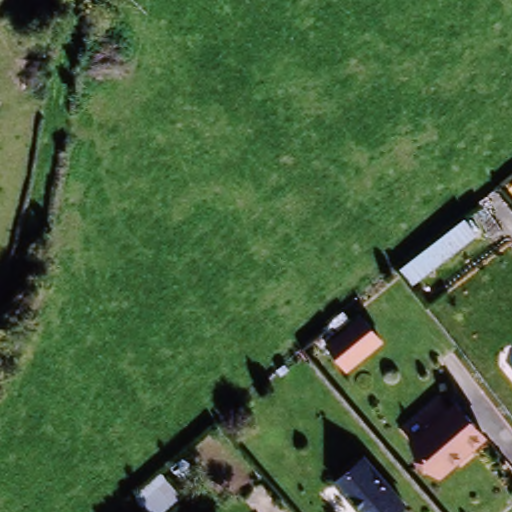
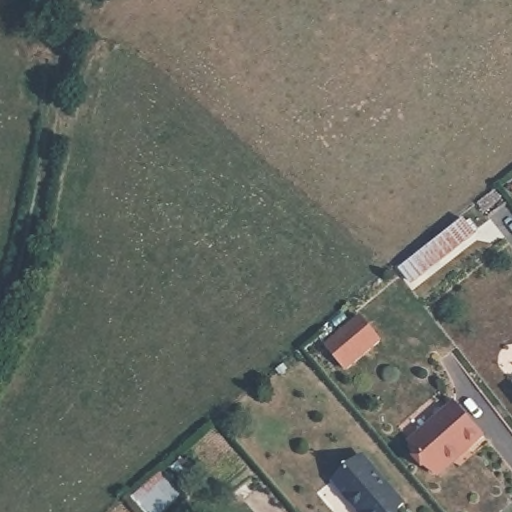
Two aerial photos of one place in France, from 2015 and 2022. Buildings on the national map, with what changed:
unchanged [(476,240),(411,292),(395,267),(460,216),(476,240)]
unchanged [(382,344),(345,374),(323,350),(360,317),(382,344)]
unchanged [(430,471),(406,442),(452,405),(480,438),(456,458),(434,477),(430,471)]
unchanged [(330,481),(350,463),(360,455),(400,502),(394,507),(389,512),(356,512),(330,481)]
unchanged [(183,493),(162,512),(151,512),(135,494),(162,471),(183,493)]

